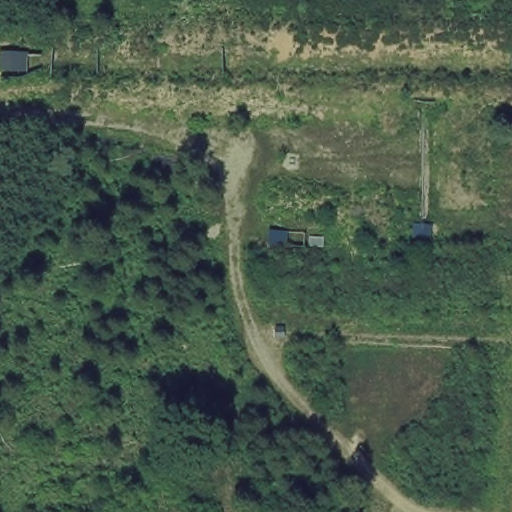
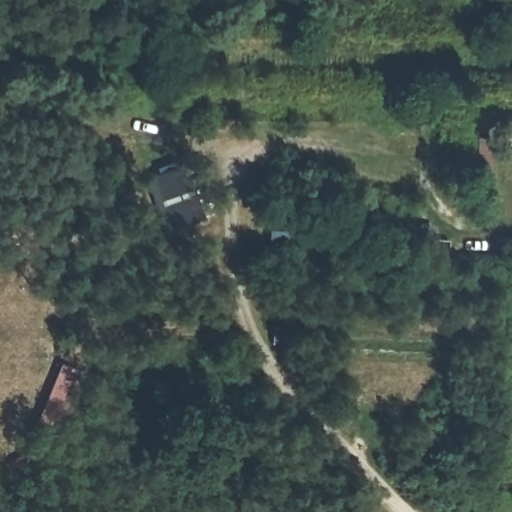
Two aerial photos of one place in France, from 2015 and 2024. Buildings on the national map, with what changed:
unchanged [(31,73),(3,72),(5,52),(31,54),(31,73)]

